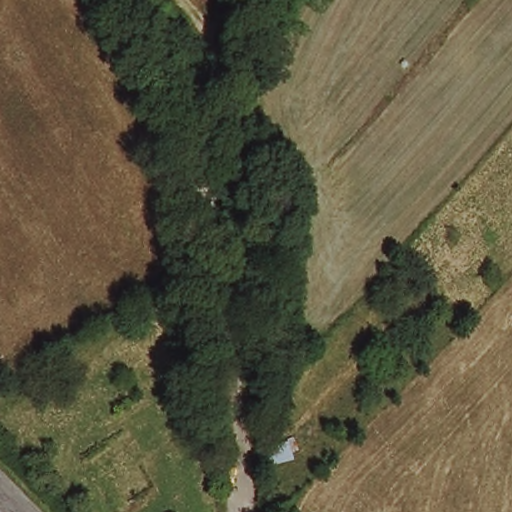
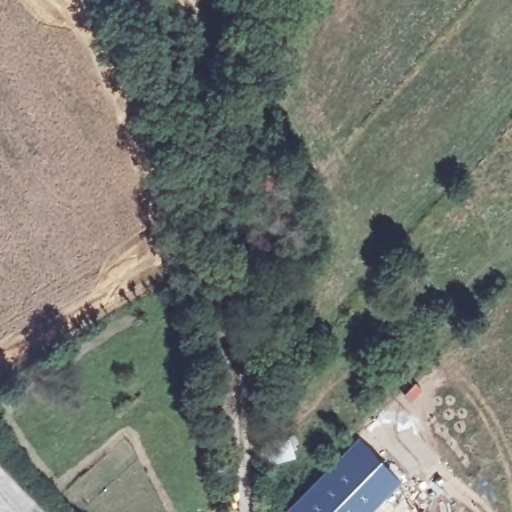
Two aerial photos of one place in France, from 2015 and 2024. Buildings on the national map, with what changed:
unchanged [(292,458),(269,462),(267,443),(289,438),(292,458)]
new [(358,439),(401,482),(370,512),(283,512),(358,439)]

